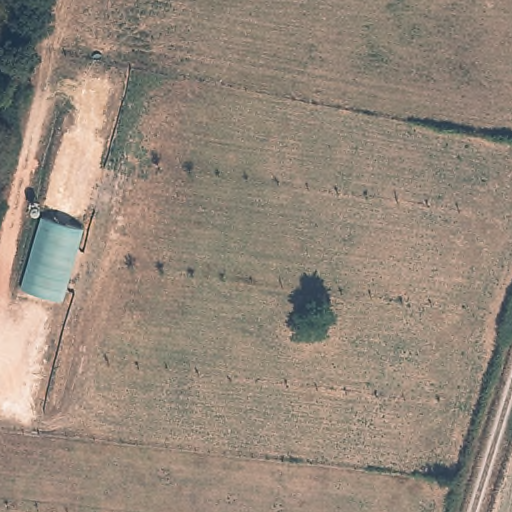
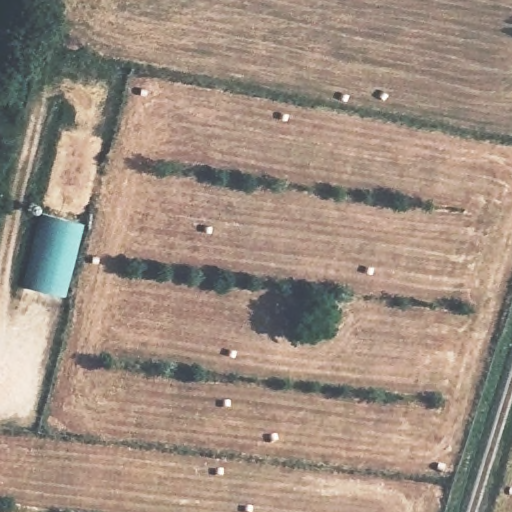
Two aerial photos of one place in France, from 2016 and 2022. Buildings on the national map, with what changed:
unchanged [(61,135),(100,144),(84,217),(45,208),(61,135)]

